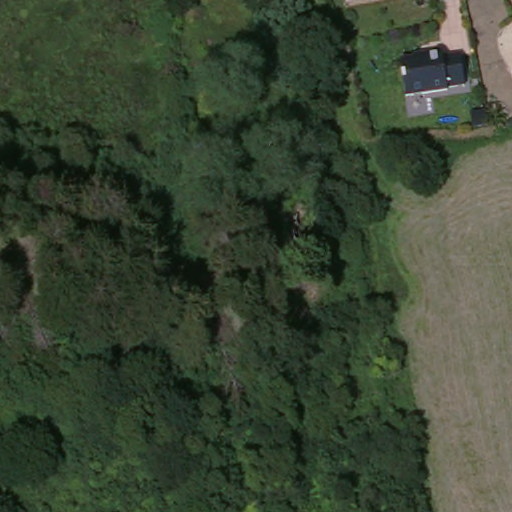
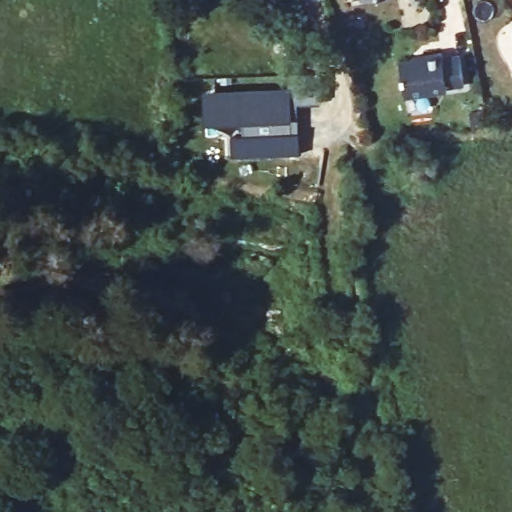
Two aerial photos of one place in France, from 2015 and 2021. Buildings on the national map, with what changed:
unchanged [(439,56),(456,52),(462,80),(445,84),(446,87),(404,96),(397,63),(421,57),(421,55),(438,51),(439,56)]
new [(229,136),(244,136),(244,123),(203,123),(202,89),(290,86),(289,68),(321,69),(322,104),(292,103),(292,120),(298,120),(299,154),(230,157),(229,136)]

